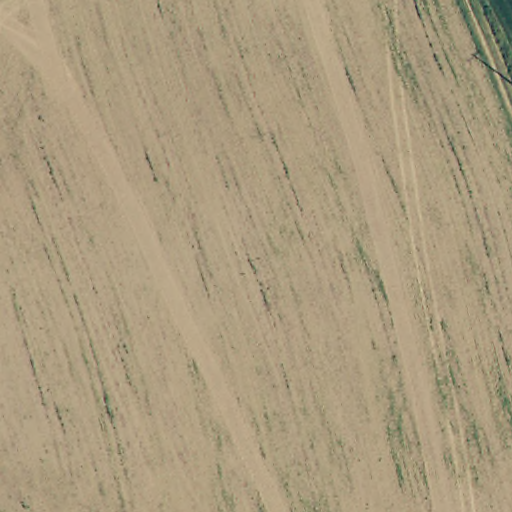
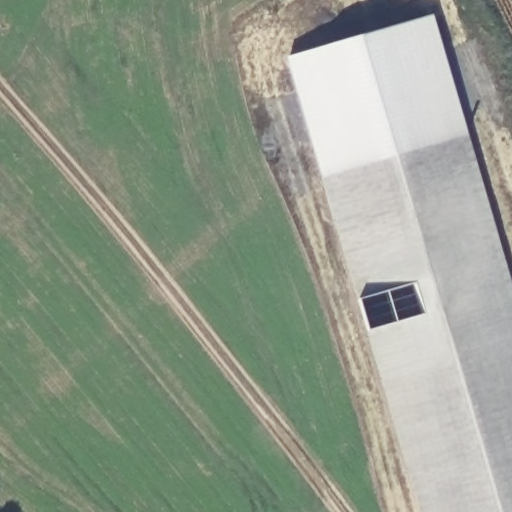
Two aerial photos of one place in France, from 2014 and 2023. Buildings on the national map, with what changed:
new [(321,177),(467,134),(512,287),(512,512),(420,512),(321,177)]

